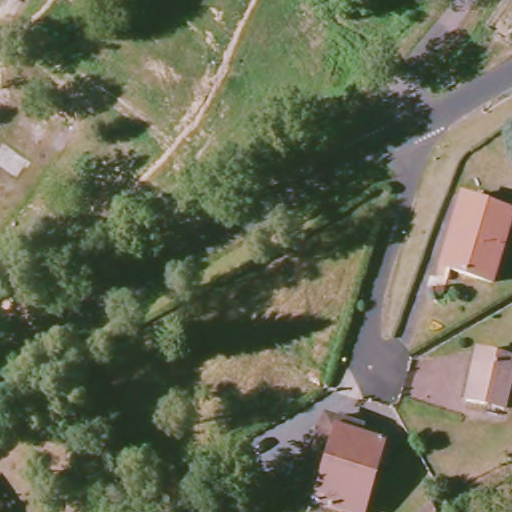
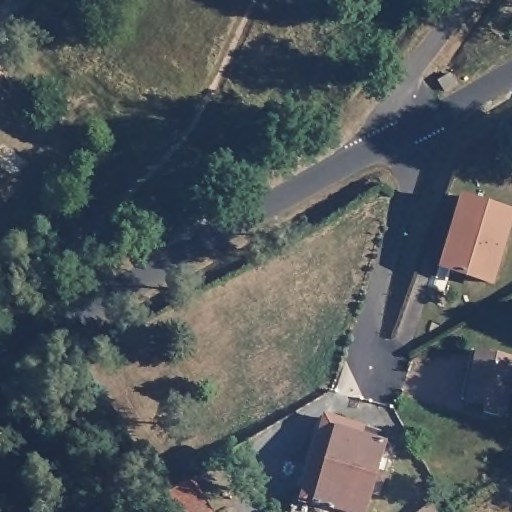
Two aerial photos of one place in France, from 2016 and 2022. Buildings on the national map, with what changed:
unchanged [(444,92),(437,81),(448,74),(455,85),(444,92)]
unchanged [(447,268),(459,230),(456,229),(466,197),(512,210),(512,227),(496,282),(447,268)]
unchanged [(466,402),(477,352),(512,360),(512,368),(503,410),(466,402)]
unchanged [(319,506),(301,501),(322,424),(327,426),(329,417),(387,433),(385,443),(393,446),(379,495),(369,491),(362,512),(350,512),(320,504),(319,506)]
unchanged [(192,479),(211,512),(181,512),(169,491),(192,479)]
unchanged [(0,509),(0,508),(1,508),(0,509)]

